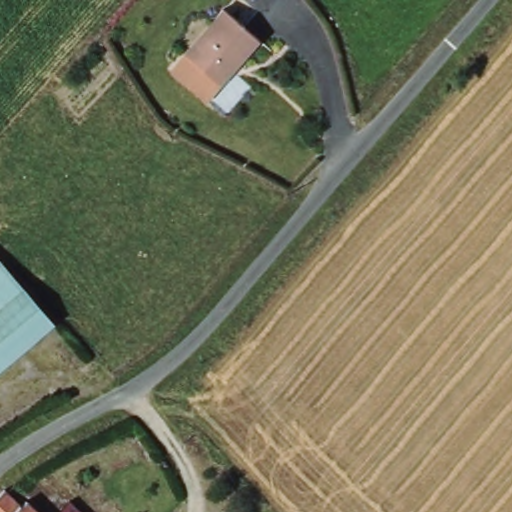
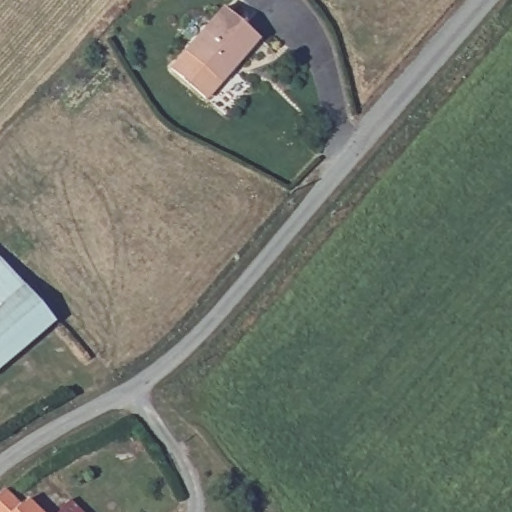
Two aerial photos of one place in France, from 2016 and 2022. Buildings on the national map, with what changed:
unchanged [(221,8),(258,40),(204,101),(167,69),(221,8)]
unchanged [(52,323),(0,368),(0,263),(52,323)]
unchanged [(6,491),(21,506),(27,500),(40,512),(0,512),(0,498),(6,491)]
unchanged [(71,500),(84,512),(58,512),(71,500)]

